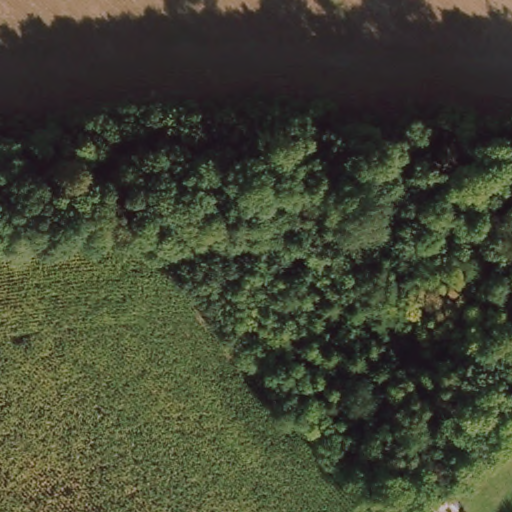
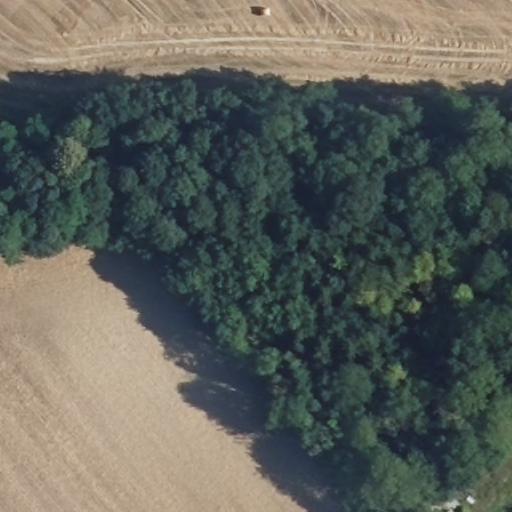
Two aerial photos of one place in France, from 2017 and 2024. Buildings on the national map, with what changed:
unchanged [(418,512),(429,503),(437,512),(418,512)]

